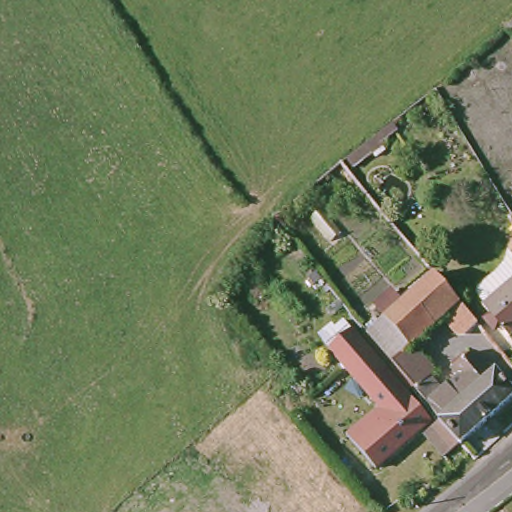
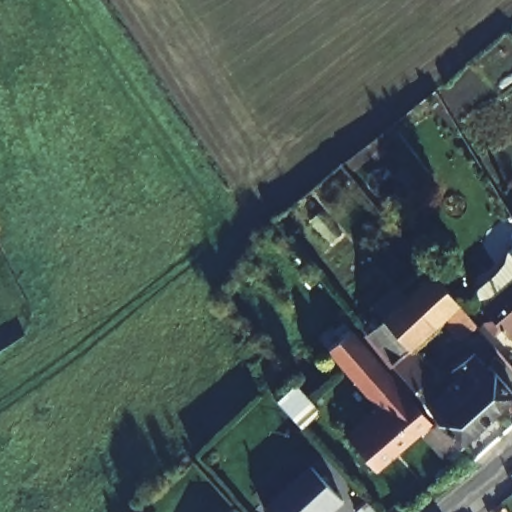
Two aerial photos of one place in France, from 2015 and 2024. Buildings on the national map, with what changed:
unchanged [(493,286),(506,273),(512,265),(512,337),(485,307),(488,304),(484,298),(482,300),(479,297),(493,286)]
unchanged [(464,308),(479,326),(460,341),(444,323),(413,350),(450,393),(429,412),(368,336),(434,272),(464,308)]
unchanged [(359,460),(346,446),(385,412),(333,350),(338,346),(329,335),(348,318),(359,332),(355,336),(429,422),(371,474),(359,460)]
unchanged [(459,387),(451,377),(455,373),(452,369),(466,358),(469,361),(474,357),(491,376),(494,373),(512,393),(512,402),(489,425),(457,388),(459,387)]
unchanged [(422,439),(439,425),(429,412),(450,393),(457,388),(489,425),(460,448),(459,447),(442,462),(422,439)]
new [(329,512),(267,512),(265,510),(310,467),(343,500),(329,512)]

